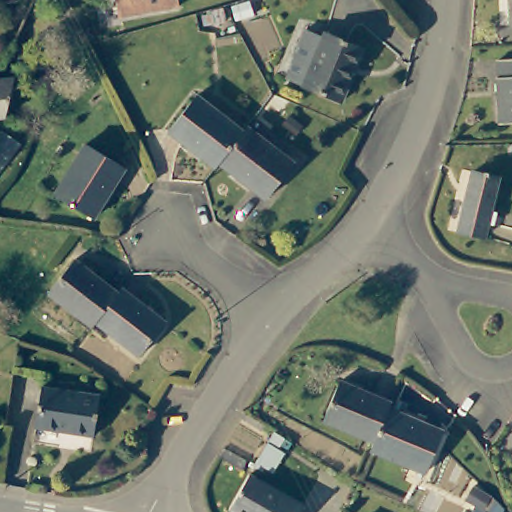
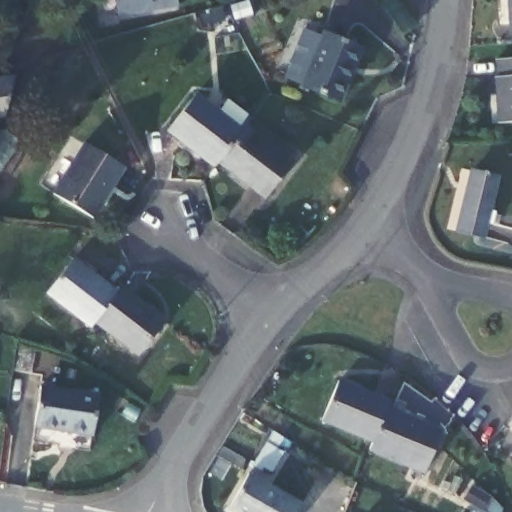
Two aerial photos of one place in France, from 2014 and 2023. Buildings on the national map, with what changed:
unchanged [(117,0),(176,0),(177,5),(121,16),(117,0)]
unchanged [(511,23),(510,0),(512,0),(512,23),(511,23)]
unchanged [(370,49),(345,101),(308,82),(292,73),(315,26),(331,35),(333,31),(370,49)]
unchanged [(512,59),(512,122),(497,122),(495,75),(497,75),(497,60),(512,59)]
unchanged [(0,73),(9,82),(9,108),(5,112),(4,113),(0,114),(0,73)]
unchanged [(167,125),(195,88),(240,125),(215,156),(212,160),(167,125)]
unchanged [(291,157),(263,194),(215,156),(240,125),(245,119),(291,157)]
unchanged [(126,164),(96,214),(57,190),(87,139),(126,164)]
unchanged [(504,171),(486,231),(460,224),(477,164),(504,171)]
unchanged [(49,287),(75,253),(117,286),(95,315),(90,321),(49,287)]
unchanged [(165,316),(139,350),(95,315),(117,286),(122,281),(165,316)]
unchanged [(317,418),(335,377),(389,400),(386,406),(370,440),(317,418)]
unchanged [(99,390),(95,430),(38,425),(41,386),(99,390)]
unchanged [(441,428),(421,471),(367,448),(370,440),(386,406),(441,428)]
unchanged [(301,504),(296,512),(237,512),(227,507),(249,474),(301,504)]

